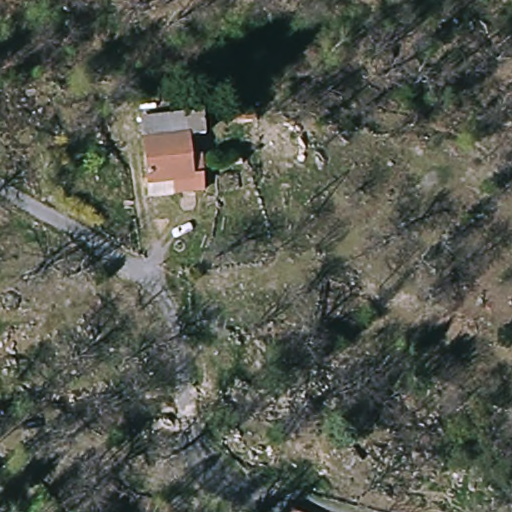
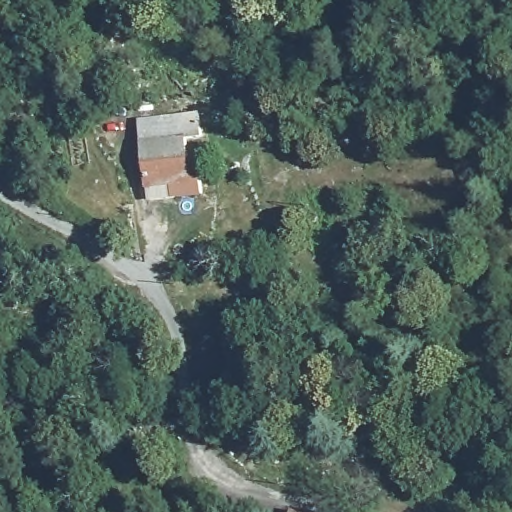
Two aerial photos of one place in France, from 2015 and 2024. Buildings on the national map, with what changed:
unchanged [(203,115),(205,139),(190,142),(191,160),(200,159),(202,198),(148,201),(140,120),(203,115)]

